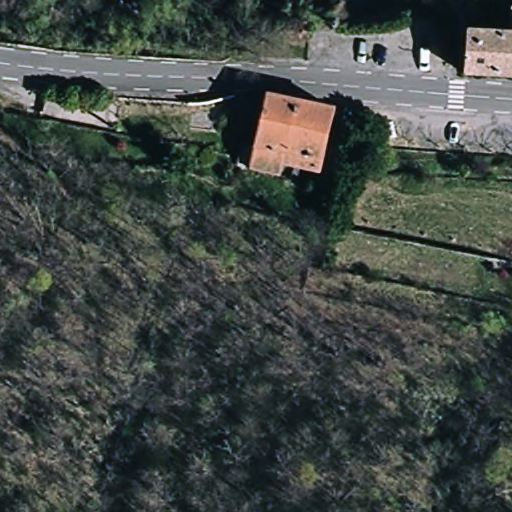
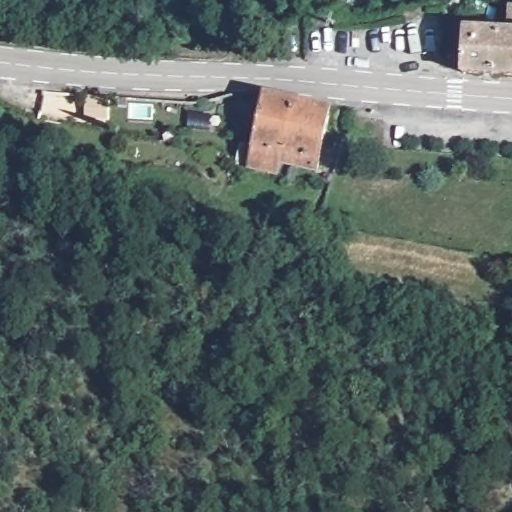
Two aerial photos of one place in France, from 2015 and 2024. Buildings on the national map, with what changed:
unchanged [(490,33),(493,9),(512,11),(512,72),(470,69),(473,32),(490,33)]
unchanged [(248,169),(265,97),(298,103),(285,165),(281,178),(248,169)]
unchanged [(285,165),(298,103),(334,110),(318,173),(285,165)]

